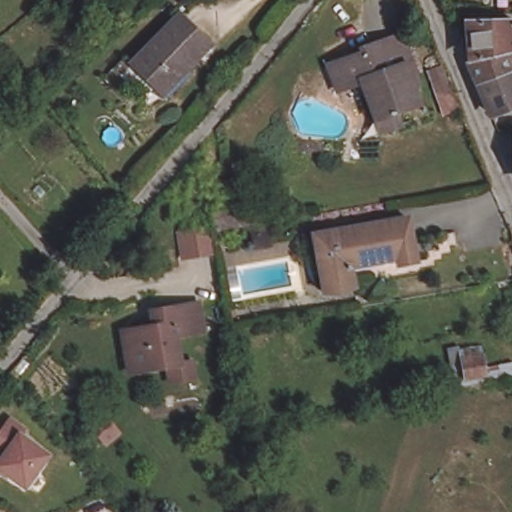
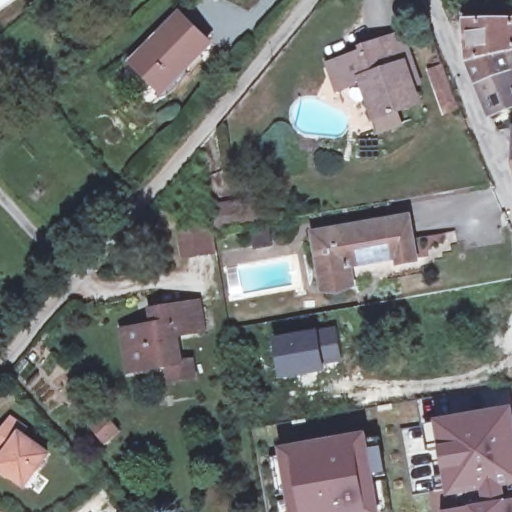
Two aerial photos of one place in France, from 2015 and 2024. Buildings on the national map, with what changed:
unchanged [(180,13),(210,43),(165,89),(135,60),(180,13)]
unchanged [(512,47),(500,50),(512,77),(512,80),(480,88),(467,57),(475,55),(473,27),(467,28),(464,21),(512,24),(512,47)]
unchanged [(391,104),(395,118),(377,124),(357,75),(332,83),(324,61),(361,48),(359,43),(391,31),(398,28),(415,75),(409,78),(415,95),(391,104)]
unchanged [(512,47),(512,77),(500,50),(512,47)]
unchanged [(460,100),(444,107),(432,75),(429,65),(444,59),(448,68),(457,91),(460,100)]
unchanged [(480,88),(512,80),(512,105),(490,112),(480,88)]
unchanged [(512,122),(512,170),(507,122),(512,122)]
unchanged [(300,148),(300,138),(322,139),(322,150),(300,148)]
unchanged [(256,198),(260,219),(222,227),(217,204),(256,198)]
unchanged [(322,290),(320,280),(312,233),(407,215),(415,258),(394,262),(392,254),(347,262),(347,266),(346,268),(347,276),(350,285),(322,290)]
unchanged [(187,229),(214,226),(217,251),(190,254),(187,229)]
unchanged [(194,376),(170,380),(167,363),(130,370),(122,330),(155,324),(152,308),(199,300),(204,330),(176,335),(180,361),(191,360),(194,376)]
new [(335,324),(342,362),(325,365),(325,371),(281,378),(272,335),(335,324)]
new [(512,512),(447,512),(465,509),(462,494),(449,496),(437,420),(512,406),(512,512)]
unchanged [(22,485),(0,470),(0,432),(12,416),(53,444),(22,485)]
new [(369,433),(382,512),(293,512),(282,449),(369,433)]

